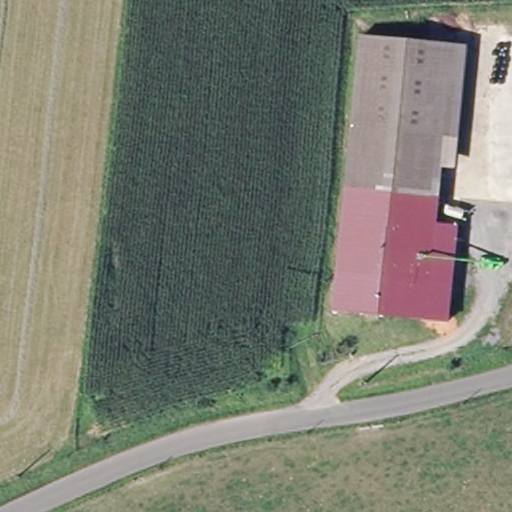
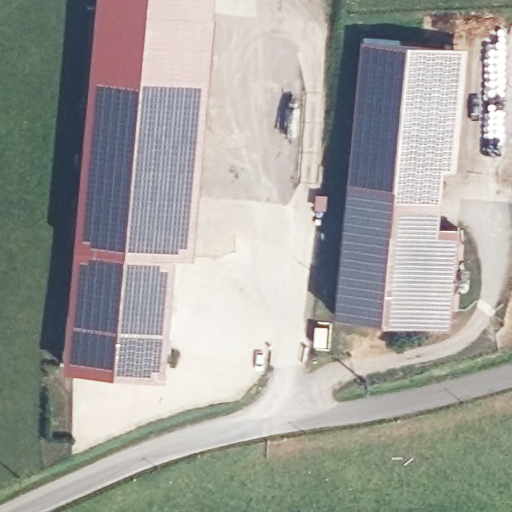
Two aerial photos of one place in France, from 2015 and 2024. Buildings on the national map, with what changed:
new [(93,1),(192,10),(170,250),(159,370),(60,361),(93,1)]
new [(192,10),(211,12),(190,252),(170,250),(192,10)]
unchanged [(466,45),(456,167),(442,165),(438,223),(459,225),(451,322),(334,312),(360,35),(466,45)]

